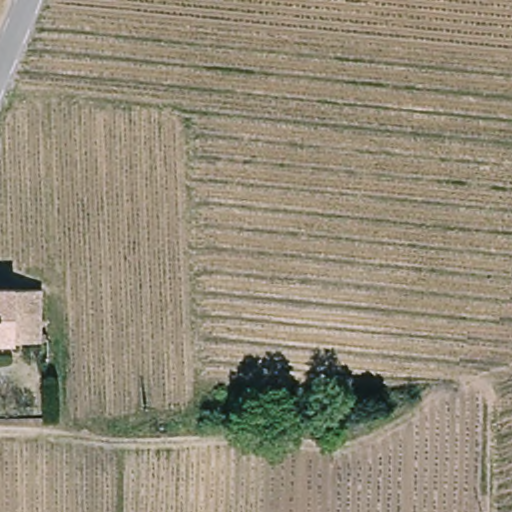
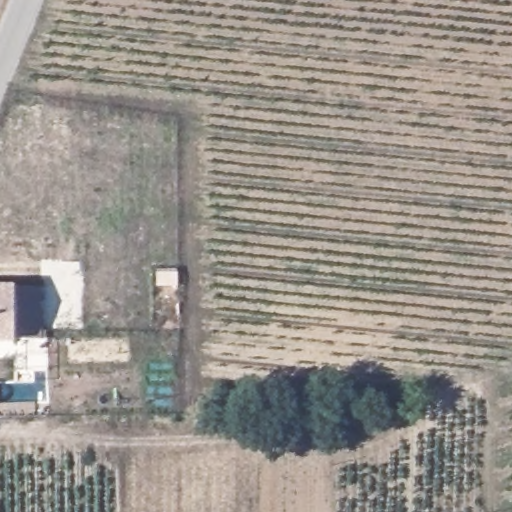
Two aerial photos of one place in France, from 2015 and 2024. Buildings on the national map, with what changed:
unchanged [(22,287),(20,339),(0,338),(0,286),(22,287)]
unchanged [(20,339),(22,287),(47,288),(48,339),(20,339)]

